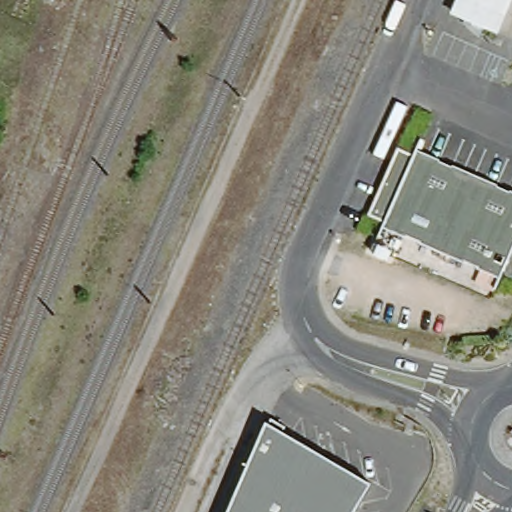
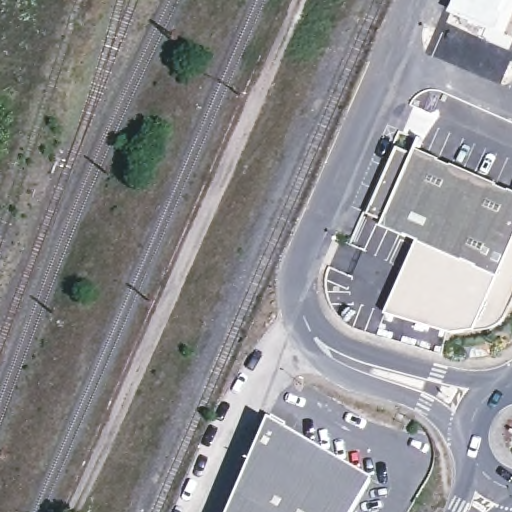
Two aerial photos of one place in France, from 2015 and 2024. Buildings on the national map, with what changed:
unchanged [(490,34),(445,13),(450,0),(505,0),(490,34)]
unchanged [(382,227),(384,222),(369,215),(397,149),(414,156),(417,151),(512,193),(512,249),(497,281),(382,227)]
new [(512,249),(512,306),(507,316),(500,325),(491,330),(474,332),(452,335),(385,315),(417,244),(497,281),(512,249)]
unchanged [(267,424),(365,481),(351,505),(256,450),(267,424)]
unchanged [(347,512),(228,512),(256,450),(351,505),(347,512)]

